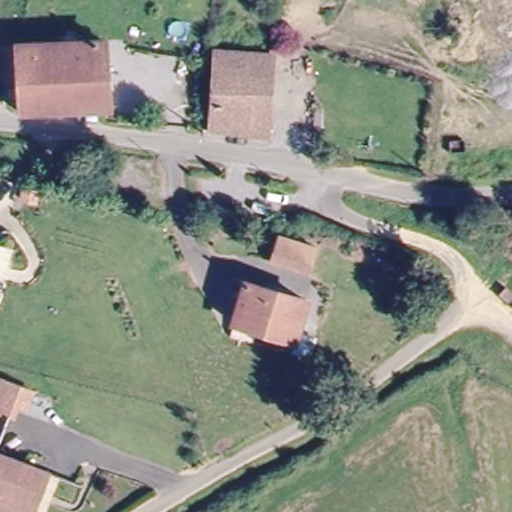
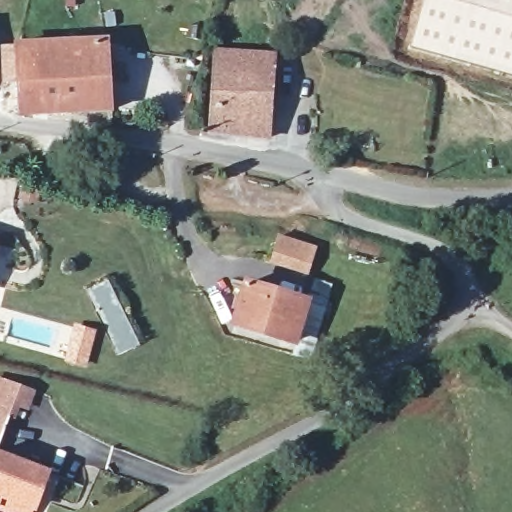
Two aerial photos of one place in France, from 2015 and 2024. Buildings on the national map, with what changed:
new [(424,0),(512,0),(512,76),(411,46),(424,0)]
unchanged [(16,80),(0,80),(0,45),(79,41),(78,25),(97,24),(97,41),(107,40),(109,115),(17,118),(16,80)]
unchanged [(215,49),(272,54),(271,141),(211,136),(215,49)]
unchanged [(313,248),(306,275),(270,265),(277,238),(313,248)]
unchanged [(300,300),(290,342),(231,326),(240,281),(300,300)]
unchanged [(292,354),(296,335),(313,338),(310,357),(292,354)]
unchanged [(39,391),(34,410),(17,405),(0,449),(0,375),(39,391)]
unchanged [(50,474),(38,508),(7,496),(2,507),(0,506),(0,456),(50,474)]

